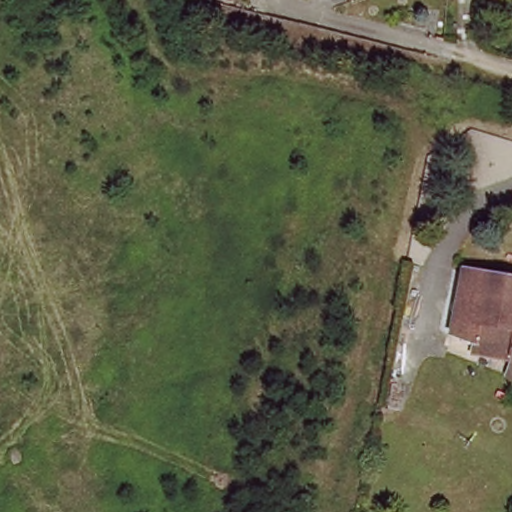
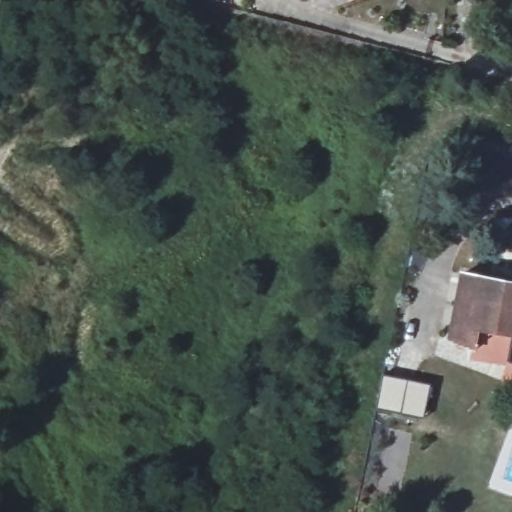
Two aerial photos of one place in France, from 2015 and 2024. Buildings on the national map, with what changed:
unchanged [(450,336),(464,272),(487,276),(500,277),(512,280),(512,356),(504,353),(508,329),(476,322),(471,342),(450,336)]
new [(383,375),(429,384),(422,417),(377,407),(383,375)]

